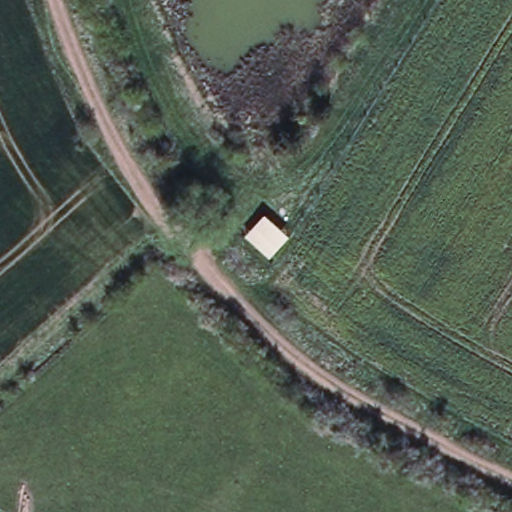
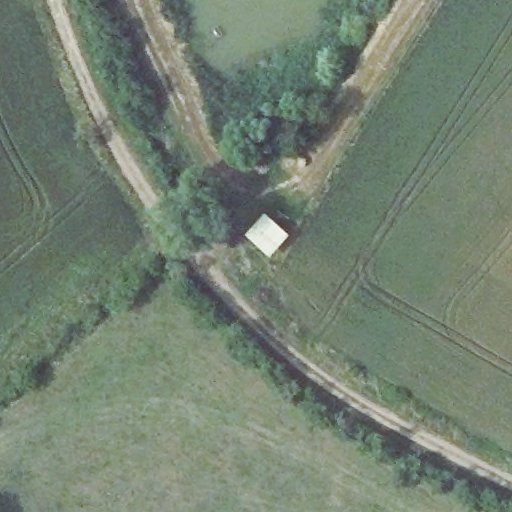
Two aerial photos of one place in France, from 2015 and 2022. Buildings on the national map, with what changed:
unchanged [(292,233),(270,260),(246,239),(267,216),(292,233)]

